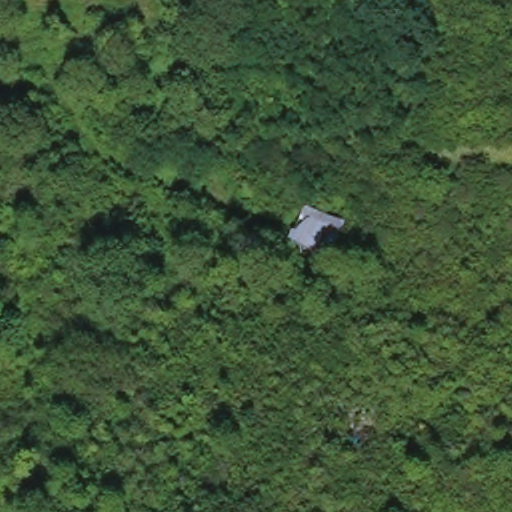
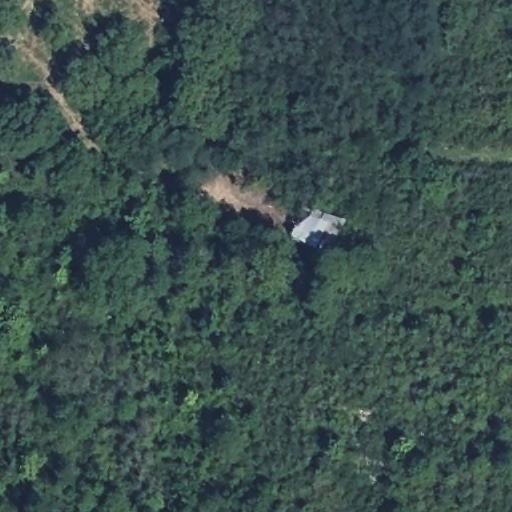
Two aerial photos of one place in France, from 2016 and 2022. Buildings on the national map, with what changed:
unchanged [(343,219),(331,252),(290,237),(303,204),(343,219)]

